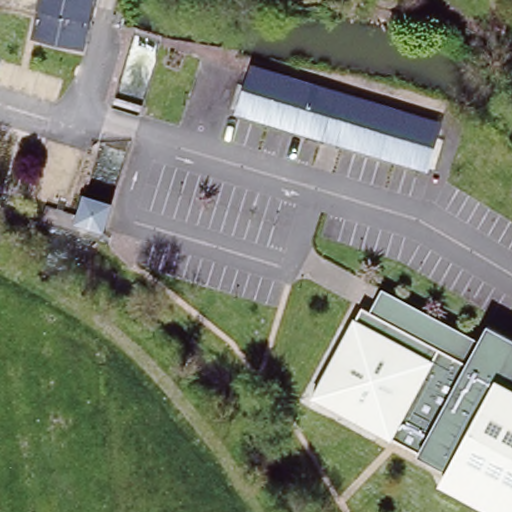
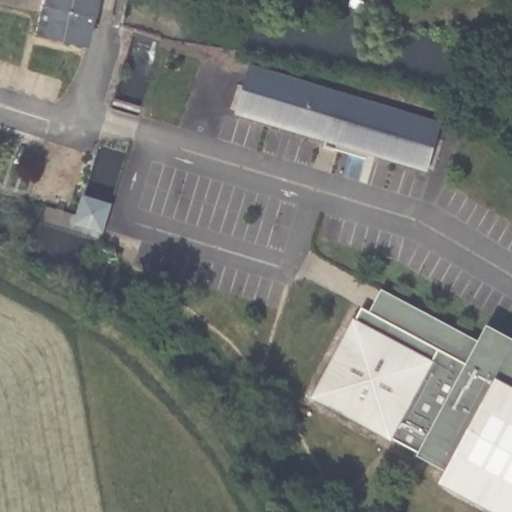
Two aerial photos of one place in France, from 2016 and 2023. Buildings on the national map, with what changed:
unchanged [(97,0),(95,13),(90,43),(40,33),(45,0),(97,0)]
unchanged [(332,5),(359,8),(357,30),(328,25),(332,5)]
unchanged [(240,113),(251,68),(388,103),(374,147),(240,113)]
unchanged [(388,103),(438,116),(427,161),(374,147),(388,103)]
unchanged [(98,201),(117,206),(110,229),(92,223),(87,222),(94,199),(98,201)]
unchanged [(386,293),(444,322),(433,342),(375,314),(386,293)]
unchanged [(335,367),(365,308),(369,310),(370,311),(375,314),(433,342),(444,322),(483,341),(492,325),(512,335),(512,508),(449,477),(454,466),(442,460),(319,398),(335,367)]

